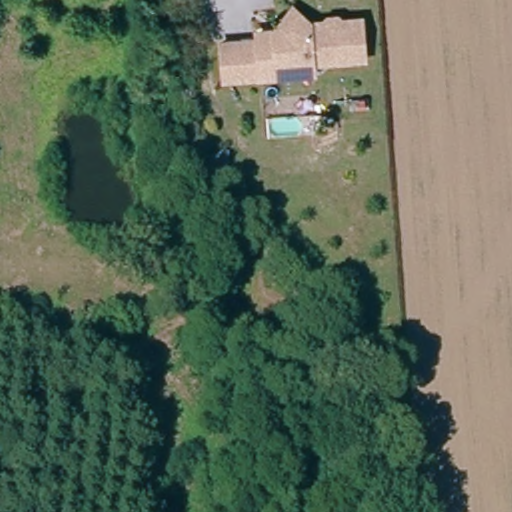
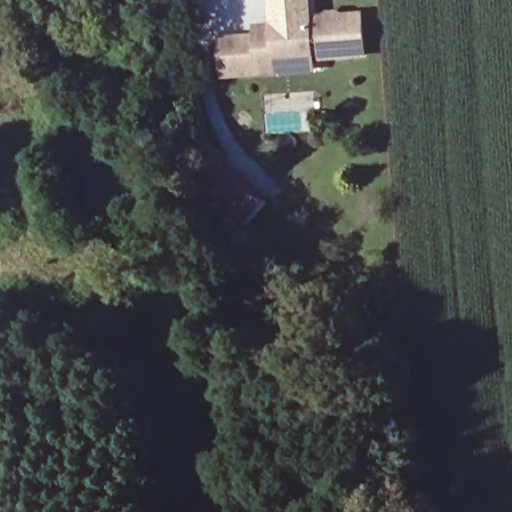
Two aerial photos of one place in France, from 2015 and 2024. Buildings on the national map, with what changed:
unchanged [(227,39),(266,37),(266,28),(281,27),(271,28),(270,0),(311,0),(311,16),(316,20),(333,20),(335,16),(345,16),(348,19),(367,18),(370,57),(317,60),(317,70),(285,72),(229,75),(227,39)]

